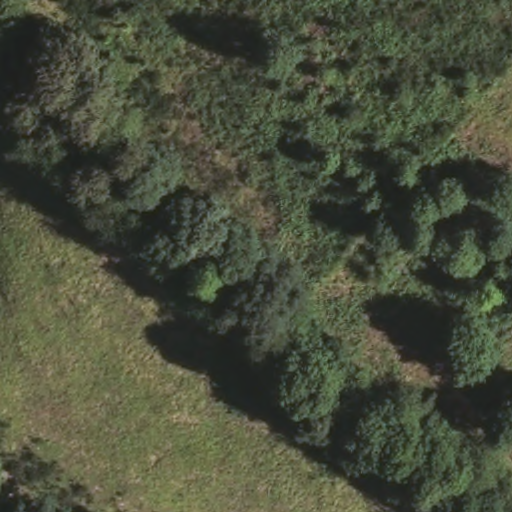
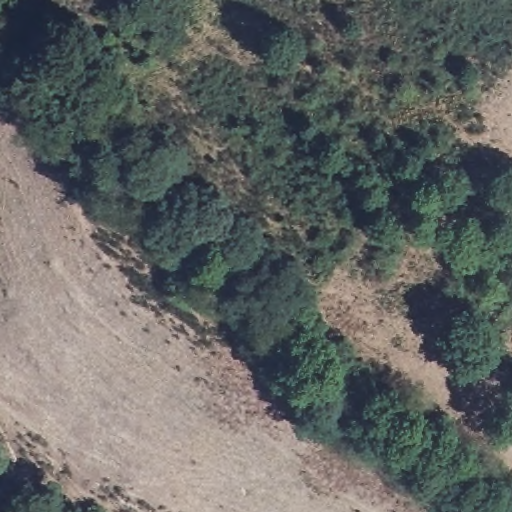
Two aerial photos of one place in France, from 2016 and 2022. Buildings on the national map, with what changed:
[]

